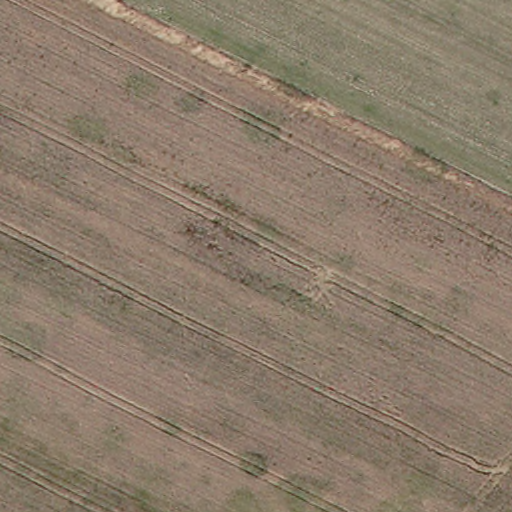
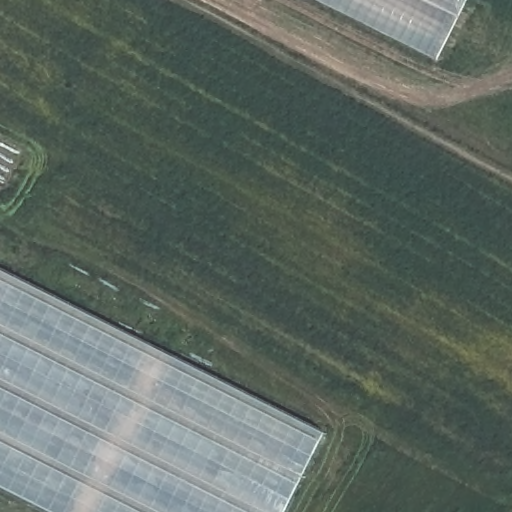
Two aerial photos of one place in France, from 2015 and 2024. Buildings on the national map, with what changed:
new [(317,0),(466,0),(436,60),(317,0)]
new [(0,486),(0,265),(325,429),(283,512),(52,512),(0,486)]

